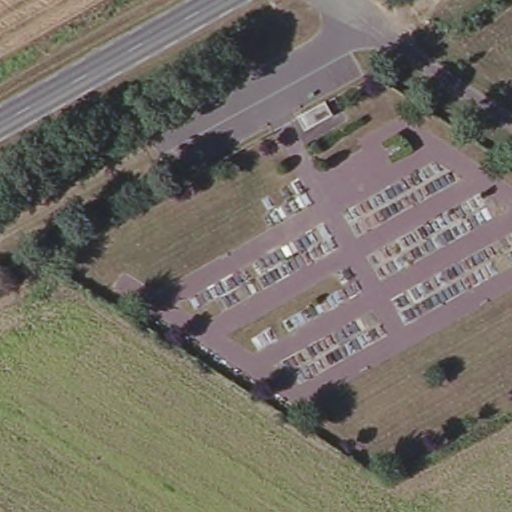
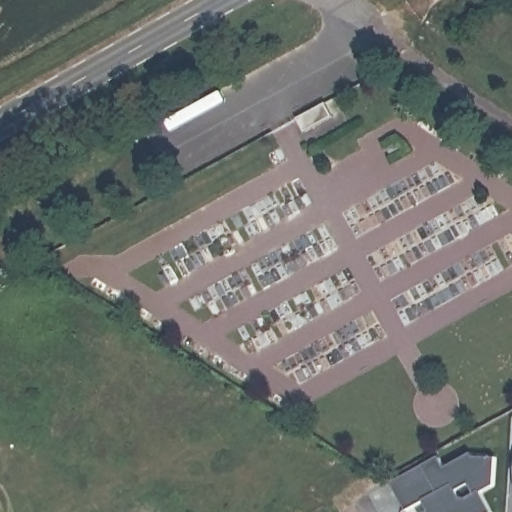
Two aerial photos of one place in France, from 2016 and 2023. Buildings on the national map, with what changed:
unchanged [(328,99),(336,112),(308,126),(300,113),(328,99)]
new [(439,453),(445,464),(471,450),(473,454),(496,454),(494,482),(481,489),(492,510),(488,512),(420,512),(429,507),(423,497),(406,507),(391,479),(439,453)]

